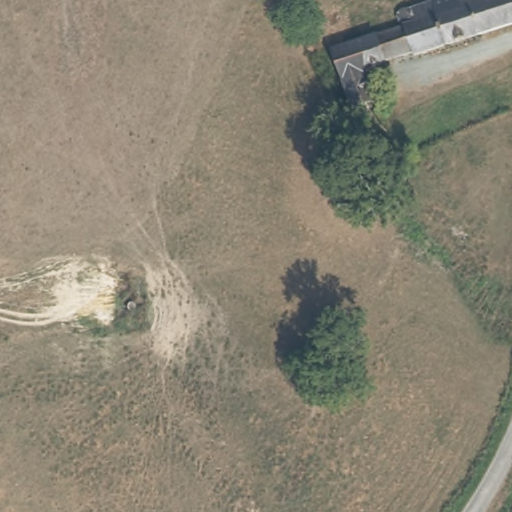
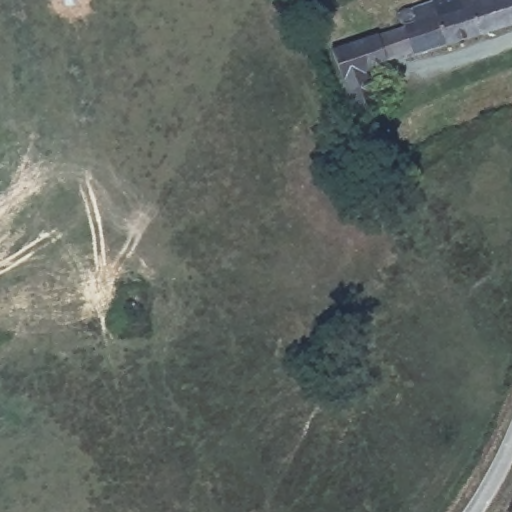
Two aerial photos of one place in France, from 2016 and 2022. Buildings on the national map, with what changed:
unchanged [(512,0),(512,27),(447,49),(437,20),(431,1),(434,0),(512,0)]
unchanged [(447,49),(439,52),(417,59),(416,57),(379,69),(368,77),(378,107),(358,115),(336,57),(405,34),(404,30),(399,27),(399,20),(409,15),(415,27),(437,20),(447,49)]

